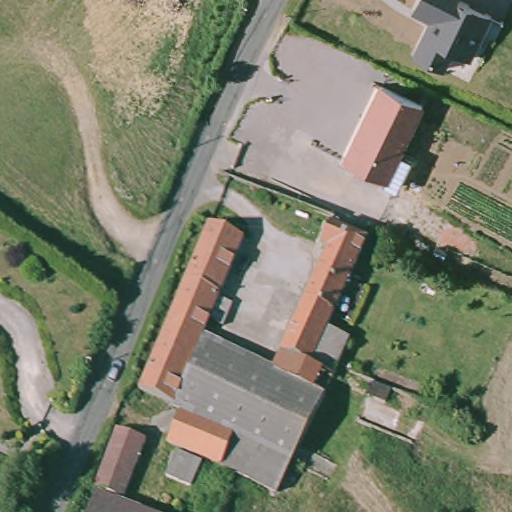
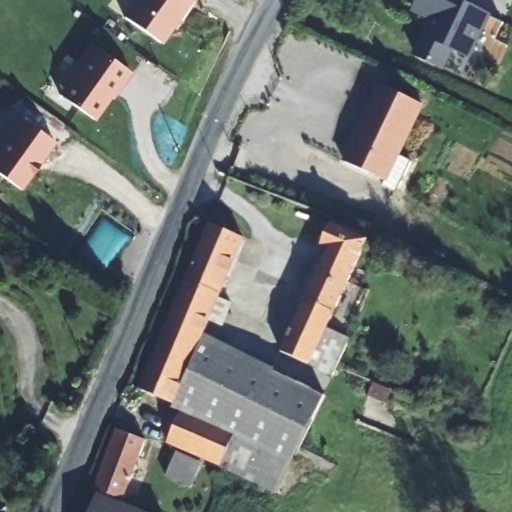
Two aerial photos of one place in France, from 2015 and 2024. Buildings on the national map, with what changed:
new [(133,0),(193,0),(162,44),(122,16),(133,0)]
unchanged [(490,12),(472,58),(452,51),(445,69),(413,54),(427,20),(410,12),(416,0),(463,0),(490,12)]
new [(94,45),(132,72),(97,122),(58,94),(94,45)]
unchanged [(425,104),(390,180),(342,161),(377,83),(425,104)]
new [(40,167),(35,163),(30,172),(34,174),(22,190),(0,175),(0,144),(20,116),(57,143),(40,167)]
unchanged [(327,389),(294,458),(229,429),(217,459),(167,438),(179,407),(173,397),(138,383),(208,217),(242,231),(202,328),(272,364),(327,389)]
unchanged [(329,325),(350,335),(339,362),(335,371),(282,345),(330,242),(322,238),(332,218),(369,233),(329,325)]
unchanged [(282,345),(335,371),(327,389),(272,364),(282,345)]
unchanged [(115,429),(142,440),(117,500),(89,488),(115,429)]
new [(280,488),(217,459),(229,429),(294,458),(280,488)]
unchanged [(125,512),(88,512),(92,499),(125,512)]

